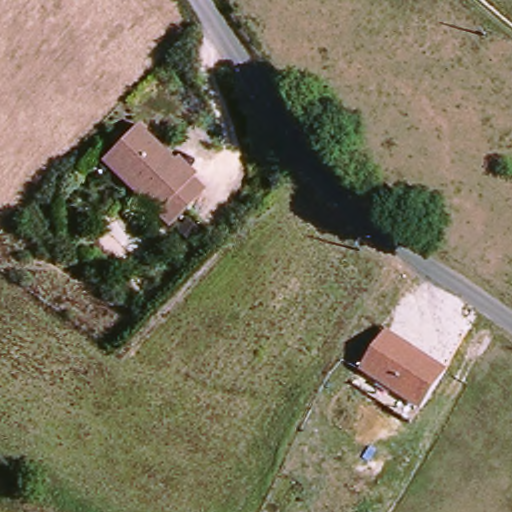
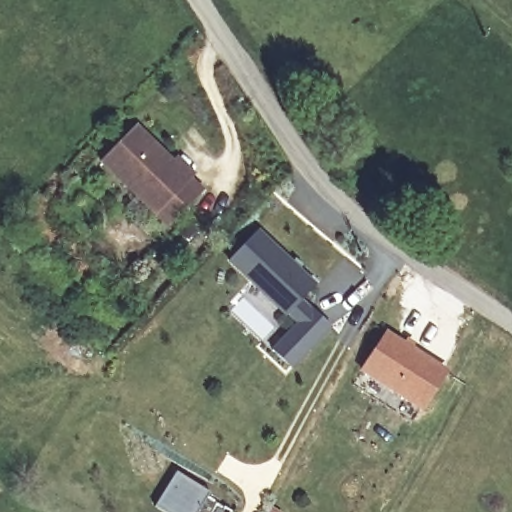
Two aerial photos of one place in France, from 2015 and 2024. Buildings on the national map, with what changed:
unchanged [(103,157),(140,122),(190,172),(157,211),(103,157)]
unchanged [(171,225),(157,211),(190,172),(208,189),(171,225)]
new [(260,229),(297,266),(276,309),(230,257),(260,229)]
new [(286,335),(295,326),(285,315),(284,317),(276,309),(297,266),(317,287),(300,302),(311,312),(312,310),(330,327),(305,352),(288,368),(270,352),(280,341),(286,335)]
unchanged [(412,422),(352,385),(362,370),(387,331),(447,370),(422,409),(412,422)]
new [(178,472),(212,492),(201,512),(163,512),(157,508),(160,502),(178,472)]

